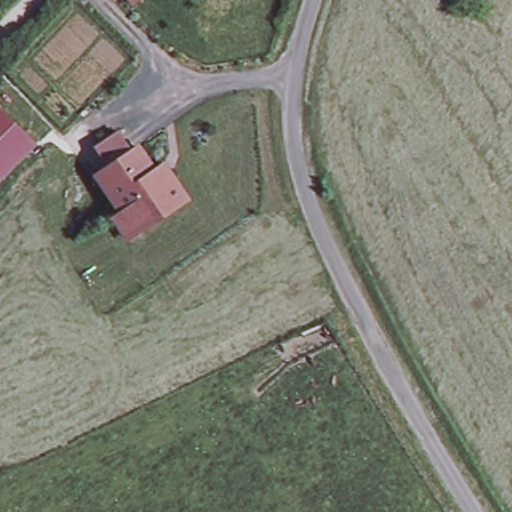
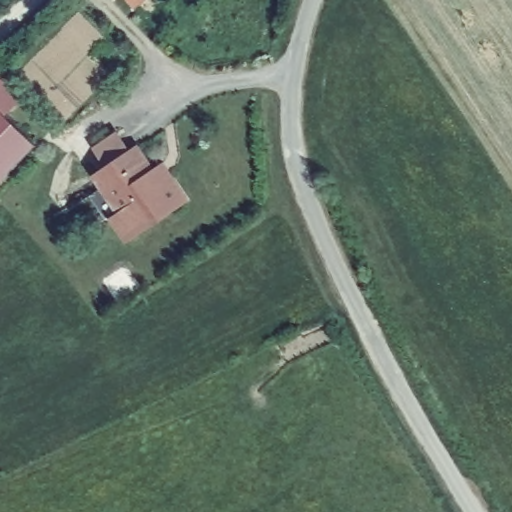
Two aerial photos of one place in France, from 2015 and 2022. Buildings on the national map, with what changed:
unchanged [(125,0),(141,0),(132,8),(125,0)]
unchanged [(0,181),(0,107),(39,144),(0,181)]
unchanged [(91,176),(104,169),(92,150),(113,136),(125,155),(133,150),(149,174),(158,169),(165,180),(179,204),(134,232),(121,241),(107,219),(115,214),(91,176)]

